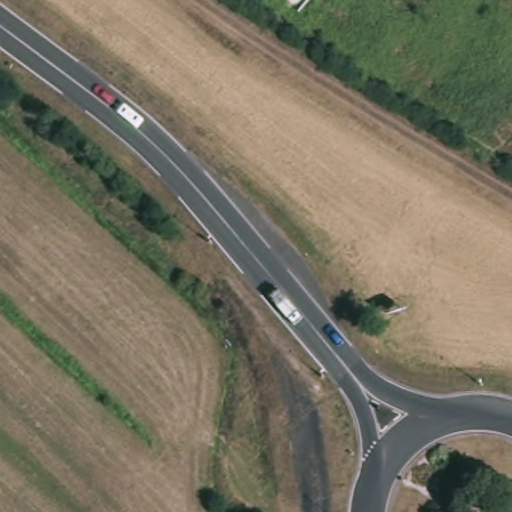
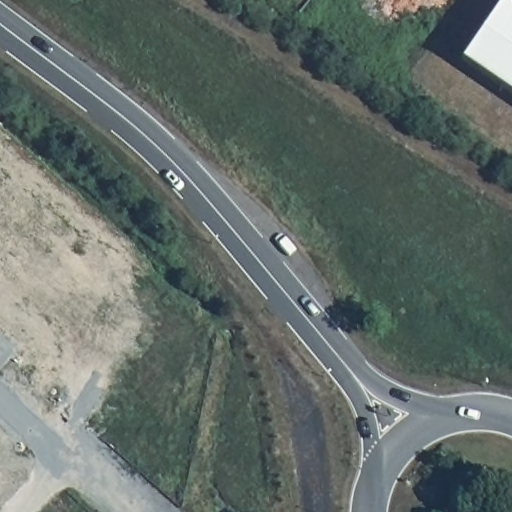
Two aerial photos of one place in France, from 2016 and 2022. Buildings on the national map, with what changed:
new [(512,3),(512,95),(459,58),(499,0),(508,0),(512,3)]

